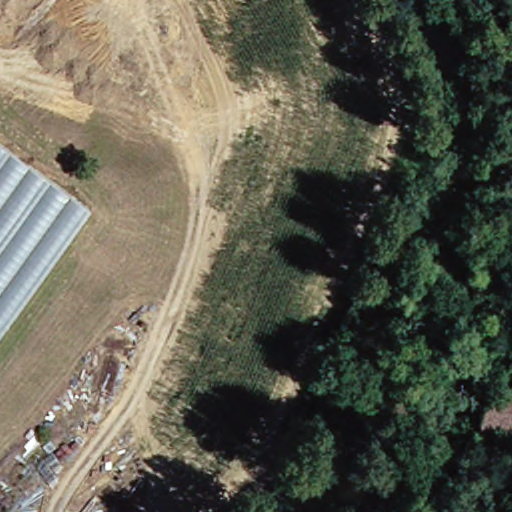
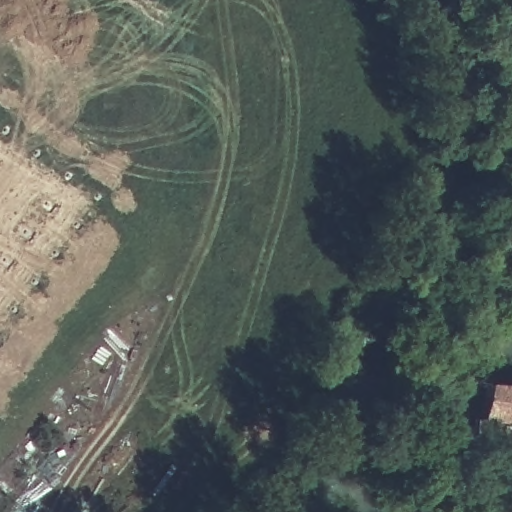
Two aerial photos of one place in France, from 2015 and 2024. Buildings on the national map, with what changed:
demolished [(0,320),(0,148),(82,207),(0,320)]
unchanged [(508,424),(469,421),(470,415),(473,401),(477,387),(497,388),(512,390),(512,425),(508,424)]

